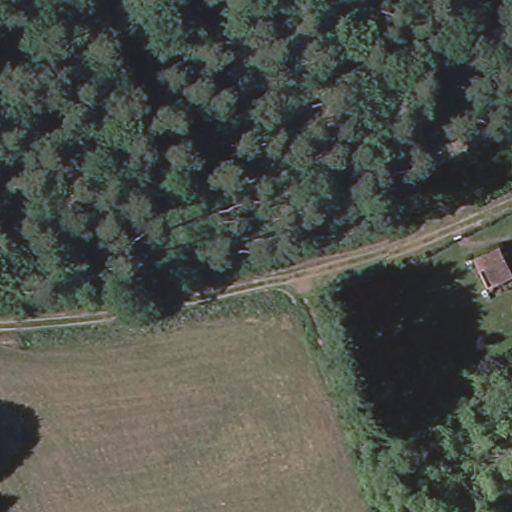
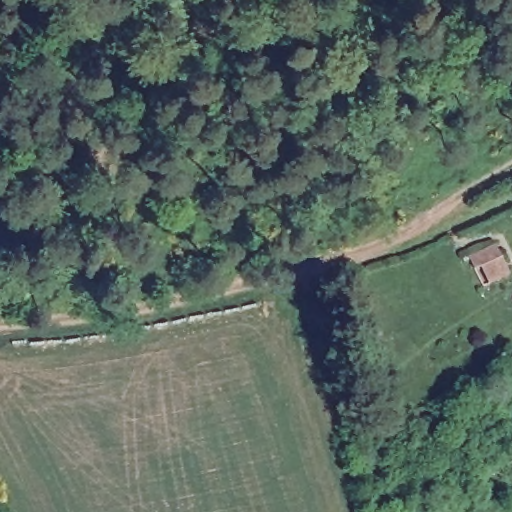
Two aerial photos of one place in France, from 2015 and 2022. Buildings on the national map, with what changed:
unchanged [(512,276),(482,288),(471,257),(496,242),(512,276)]

